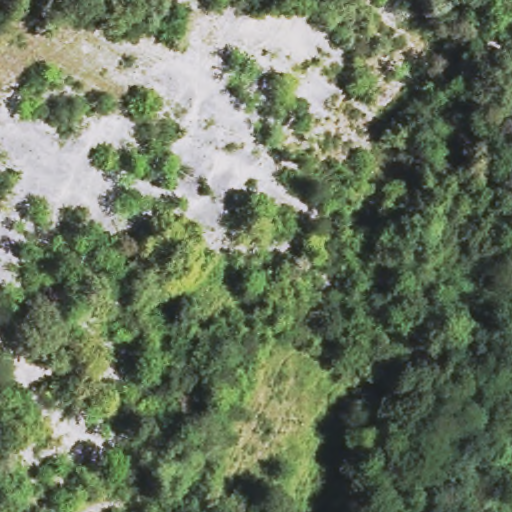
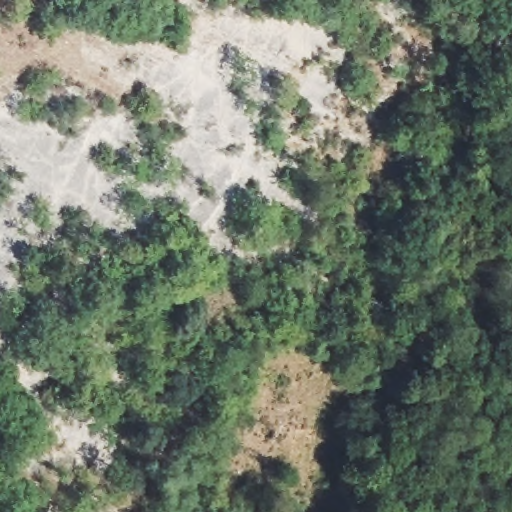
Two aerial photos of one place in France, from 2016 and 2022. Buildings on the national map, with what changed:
[]

